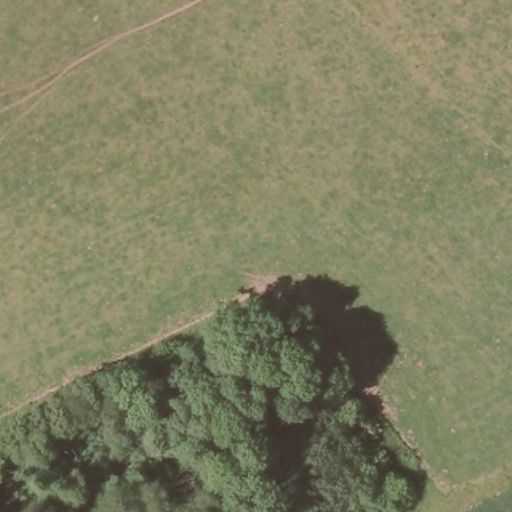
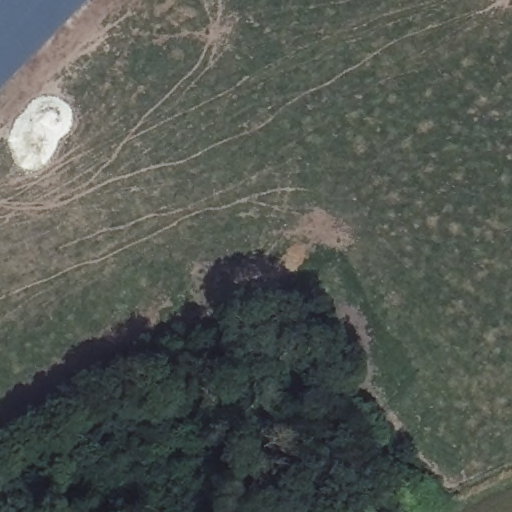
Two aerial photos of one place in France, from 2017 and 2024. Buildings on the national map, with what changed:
new [(0,88),(0,0),(86,0),(0,88)]

